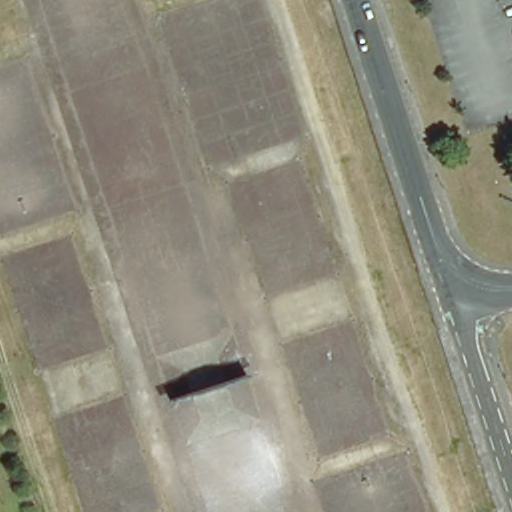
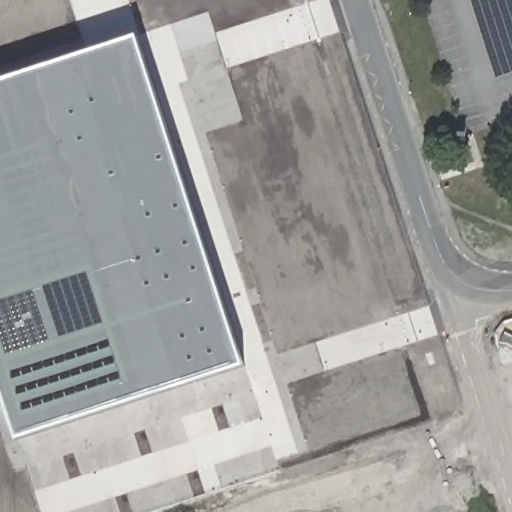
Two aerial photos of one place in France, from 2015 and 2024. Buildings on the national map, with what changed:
new [(0,87),(135,44),(240,376),(20,445),(0,386),(0,87)]

